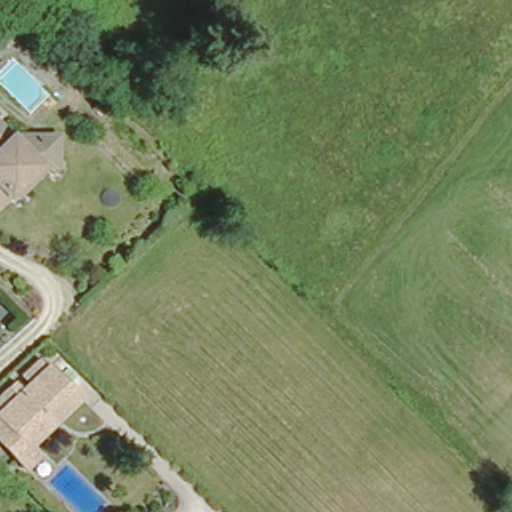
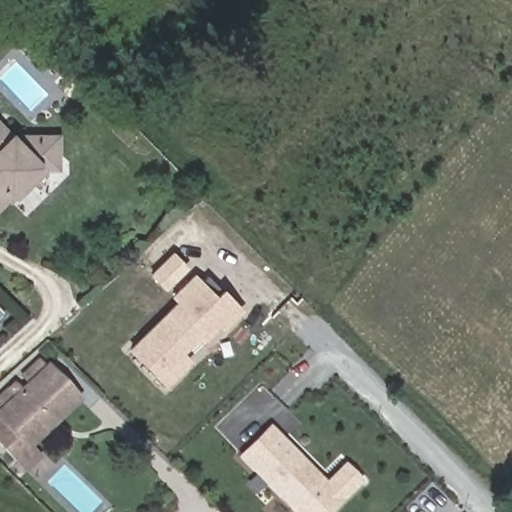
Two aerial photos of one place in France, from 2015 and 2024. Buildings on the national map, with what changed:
unchanged [(0,185),(0,121),(12,134),(31,133),(50,133),(51,163),(37,163),(24,174),(9,187),(0,185)]
new [(164,291),(147,274),(171,250),(188,267),(164,291)]
new [(221,288),(244,311),(222,331),(214,322),(183,352),(192,361),(165,388),(126,348),(174,301),(169,296),(194,272),(215,294),(221,288)]
new [(0,317),(0,313),(2,315),(0,317)]
unchanged [(0,397),(37,358),(69,389),(50,408),(24,436),(34,445),(21,459),(0,438),(0,427),(0,413),(0,397)]
new [(362,482),(332,512),(290,512),(235,457),(268,424),(324,480),(345,461),(362,482)]

